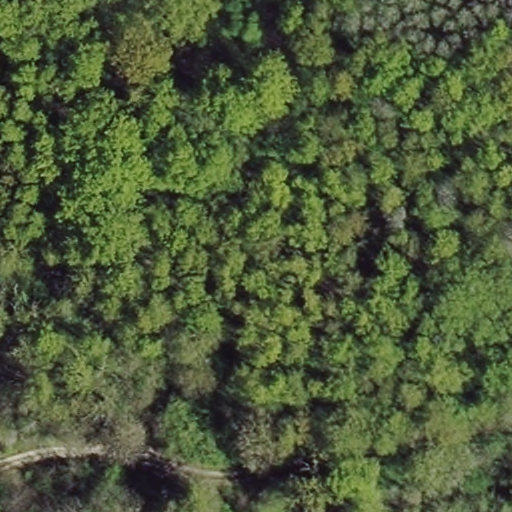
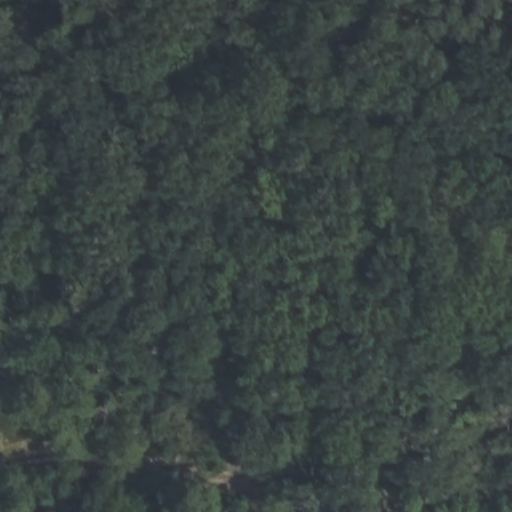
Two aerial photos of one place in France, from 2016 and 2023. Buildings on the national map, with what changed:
[]

